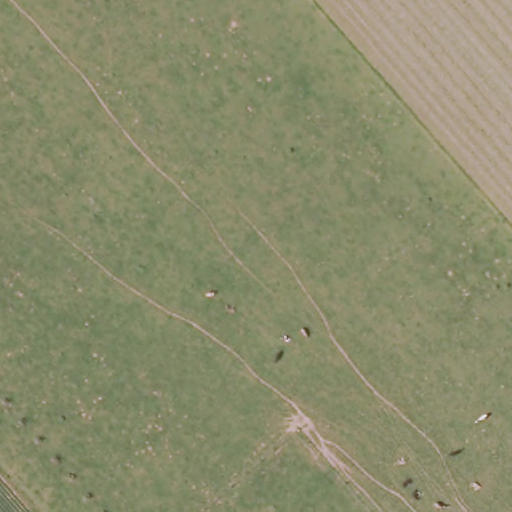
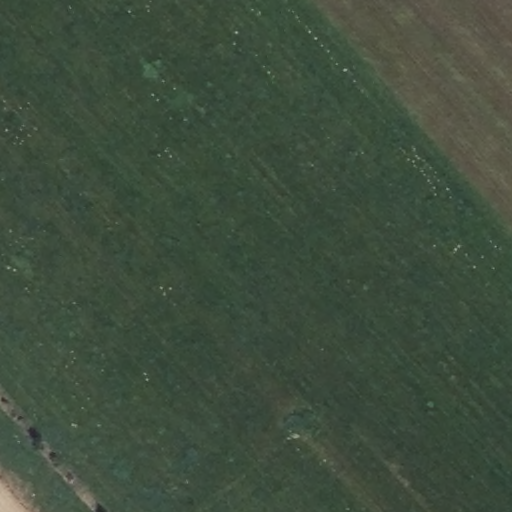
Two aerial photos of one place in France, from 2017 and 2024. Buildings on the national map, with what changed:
[]

